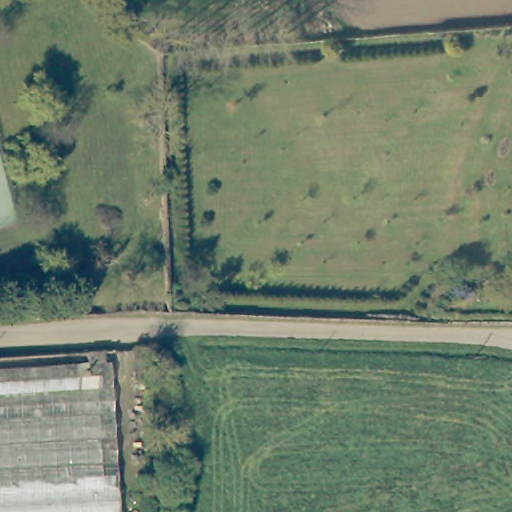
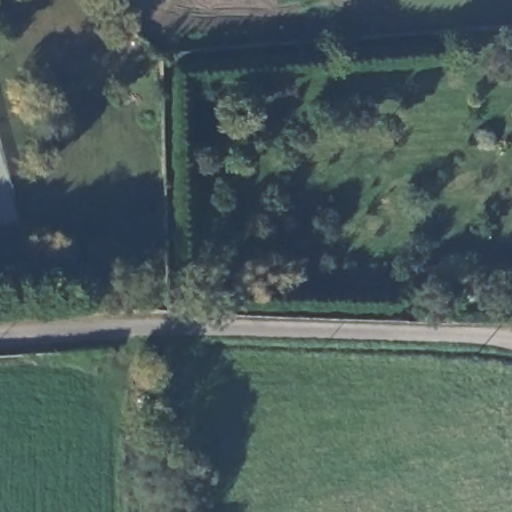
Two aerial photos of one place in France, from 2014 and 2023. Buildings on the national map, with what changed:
demolished [(107,359),(117,512),(0,512),(0,364),(107,359)]

